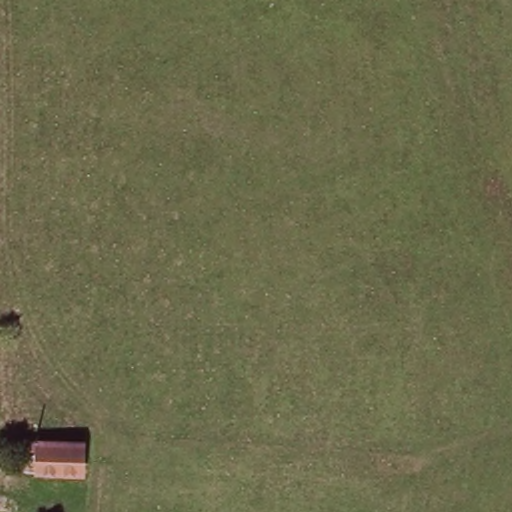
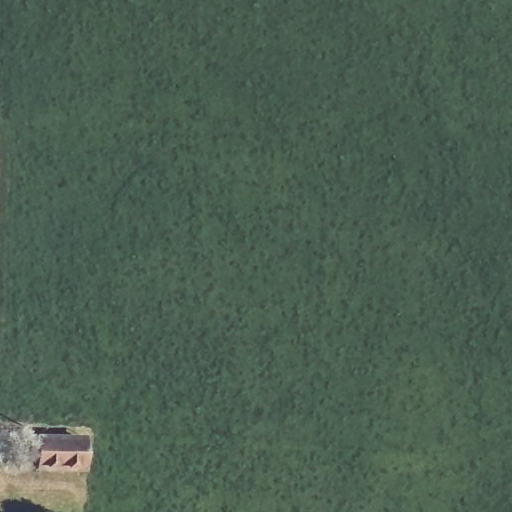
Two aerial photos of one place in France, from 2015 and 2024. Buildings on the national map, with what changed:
unchanged [(79,467),(39,467),(21,466),(22,437),(40,437),(80,440),(79,467)]

